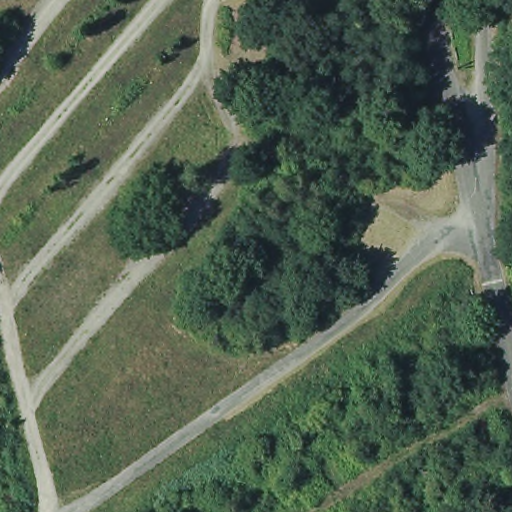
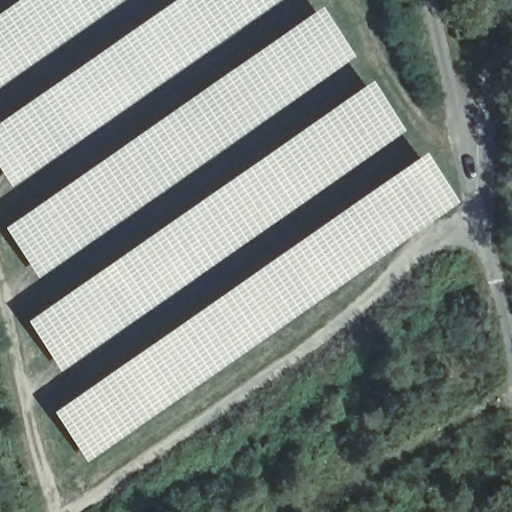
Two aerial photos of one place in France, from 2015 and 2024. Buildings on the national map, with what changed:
new [(19,0),(123,0),(0,86),(0,13),(19,0)]
new [(0,172),(0,122),(175,0),(280,0),(11,188),(0,172)]
new [(320,9),(354,58),(37,278),(3,230),(320,9)]
new [(60,372),(26,323),(370,83),(405,131),(60,372)]
new [(86,463),(52,414),(424,155),(458,203),(86,463)]

